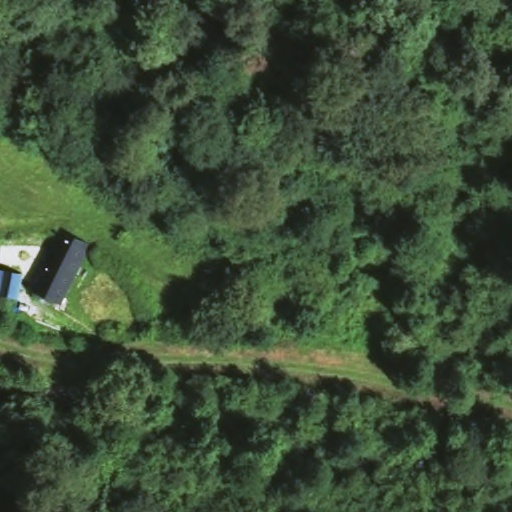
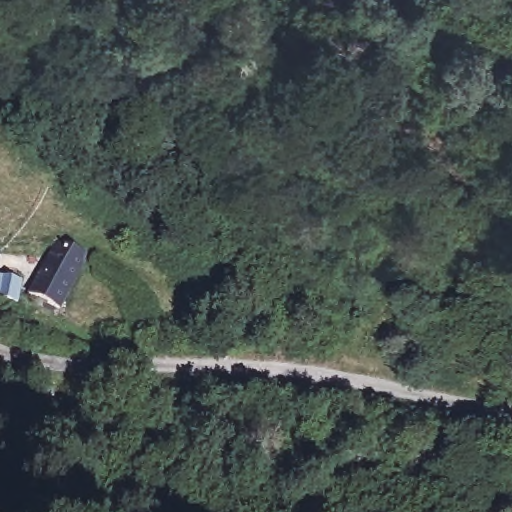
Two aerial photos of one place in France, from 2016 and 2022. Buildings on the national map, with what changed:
unchanged [(69,310),(47,300),(30,292),(57,231),(95,248),(69,310)]
unchanged [(25,275),(20,300),(2,296),(0,296),(0,270),(25,275)]
unchanged [(119,435),(99,403),(159,367),(179,398),(119,435)]

